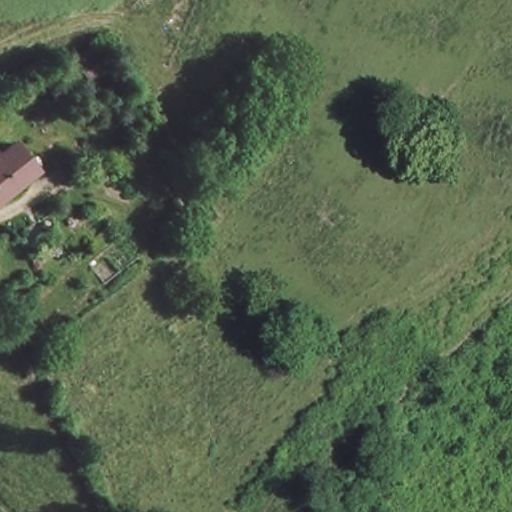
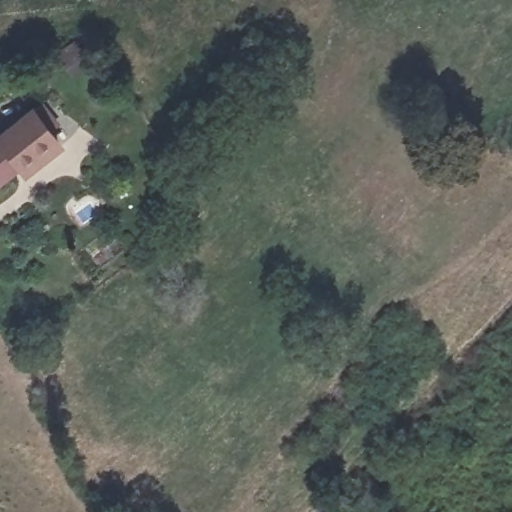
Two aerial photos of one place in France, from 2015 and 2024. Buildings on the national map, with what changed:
new [(33,105),(64,145),(23,178),(18,171),(0,185),(0,132),(33,105)]
demolished [(0,182),(0,132),(25,165),(0,182)]

